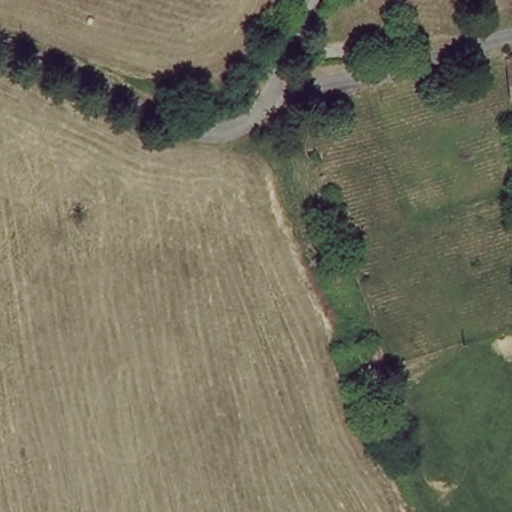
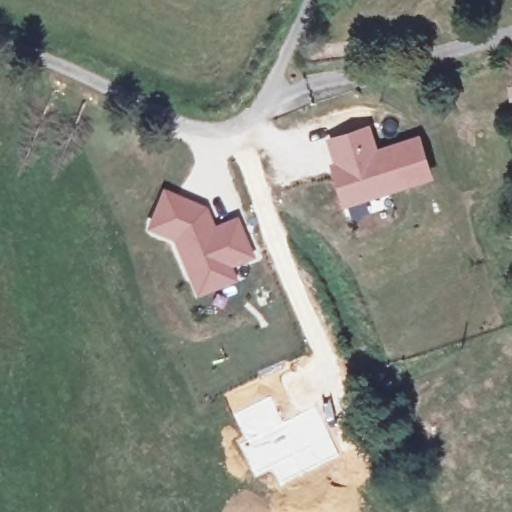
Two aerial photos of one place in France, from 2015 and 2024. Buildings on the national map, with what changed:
unchanged [(512,62),(512,105),(509,106),(511,62),(512,62)]
new [(371,124),(379,147),(420,133),(434,179),(343,209),(333,176),(325,137),(371,124)]
new [(161,187),(207,206),(214,225),(238,216),(255,260),(231,270),(238,282),(194,300),(169,242),(143,231),(161,187)]

